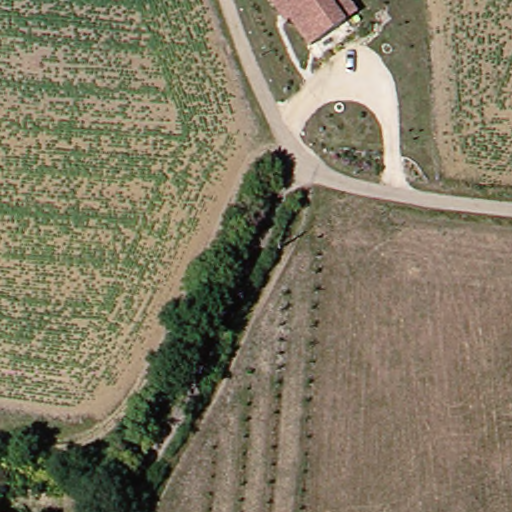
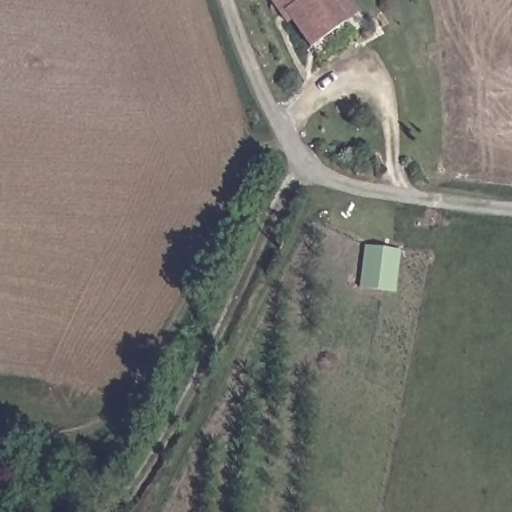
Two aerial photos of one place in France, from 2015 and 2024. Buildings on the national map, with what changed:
unchanged [(360,6),(348,15),(315,44),(286,10),(282,14),(271,0),(355,0),(360,6)]
new [(396,292),(360,287),(365,245),(401,250),(396,292)]

